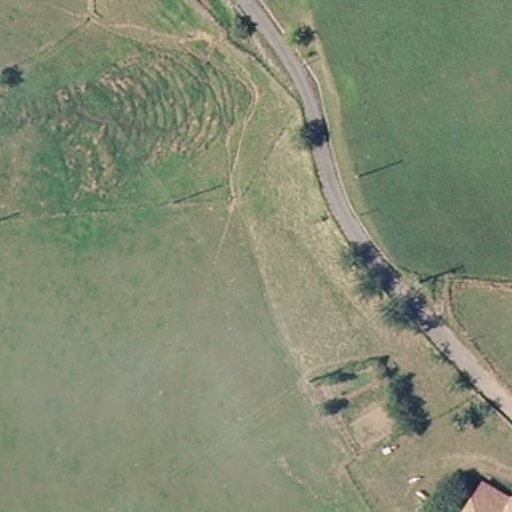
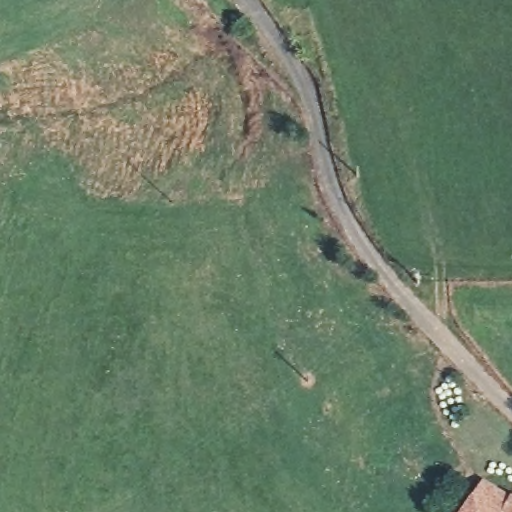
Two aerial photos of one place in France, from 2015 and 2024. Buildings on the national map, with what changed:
unchanged [(512,499),(512,512),(468,512),(486,484),(512,499)]

